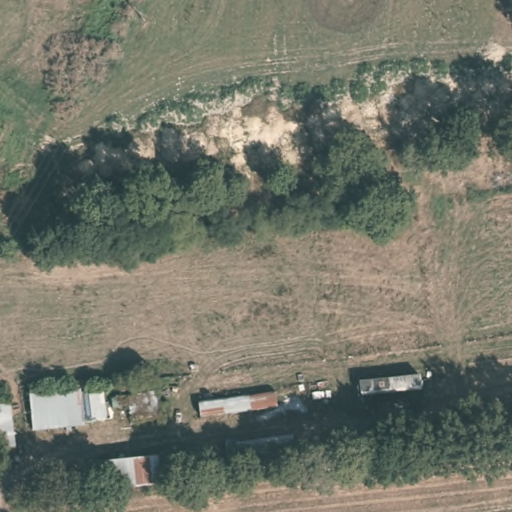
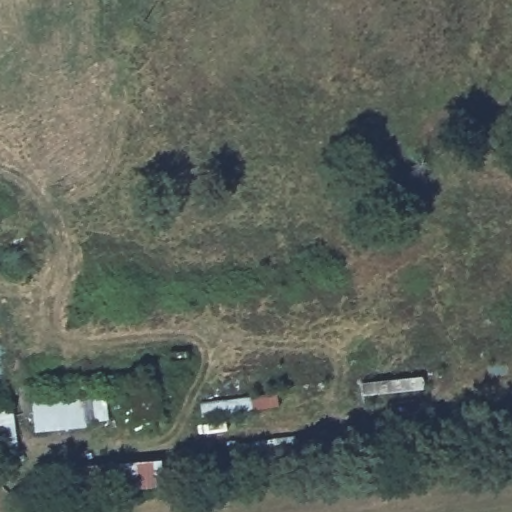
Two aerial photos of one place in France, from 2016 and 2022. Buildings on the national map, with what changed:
unchanged [(80,391),(84,432),(31,436),(24,396),(80,391)]
unchanged [(15,451),(0,452),(0,402),(13,397),(15,451)]

